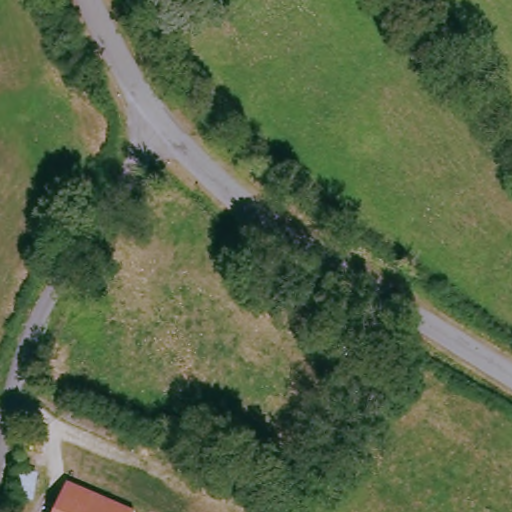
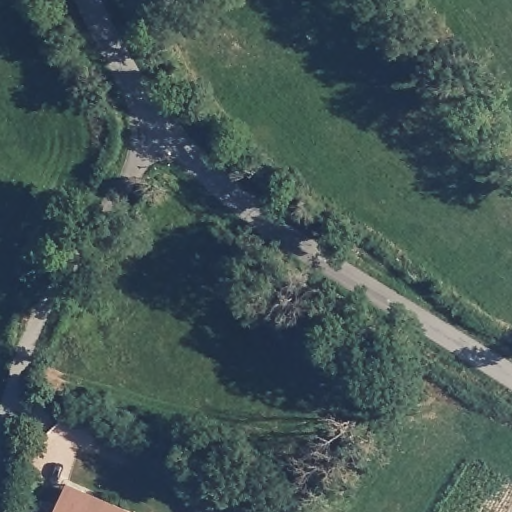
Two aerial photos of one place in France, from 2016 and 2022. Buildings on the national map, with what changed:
unchanged [(136,509),(134,512),(54,512),(68,479),(136,509)]

